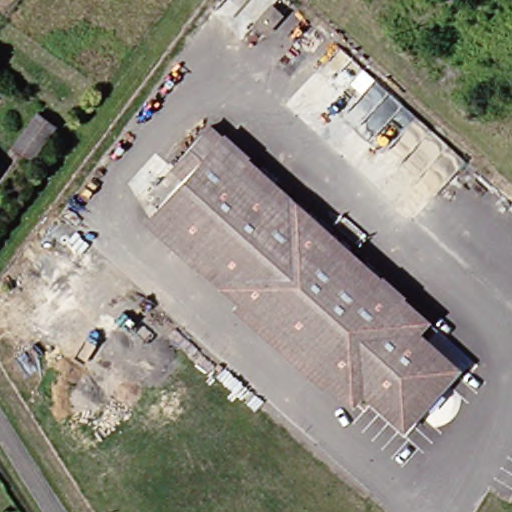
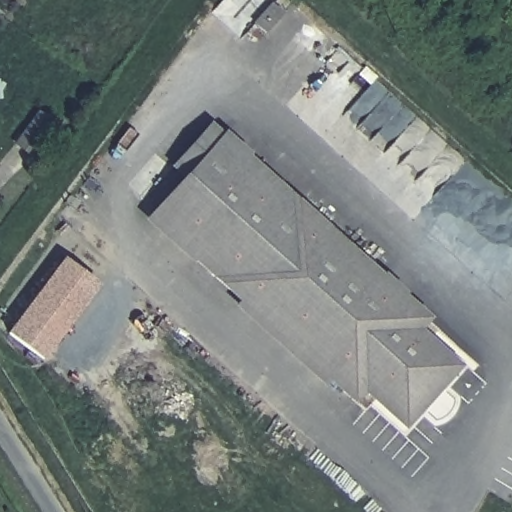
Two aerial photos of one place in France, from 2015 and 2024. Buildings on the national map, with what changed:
unchanged [(1,139),(23,112),(42,127),(21,154),(1,139)]
unchanged [(401,425),(360,389),(350,400),(147,215),(185,176),(173,164),(210,124),(423,319),(413,330),(454,368),(401,425)]
new [(64,259),(100,286),(45,363),(7,335),(64,259)]

